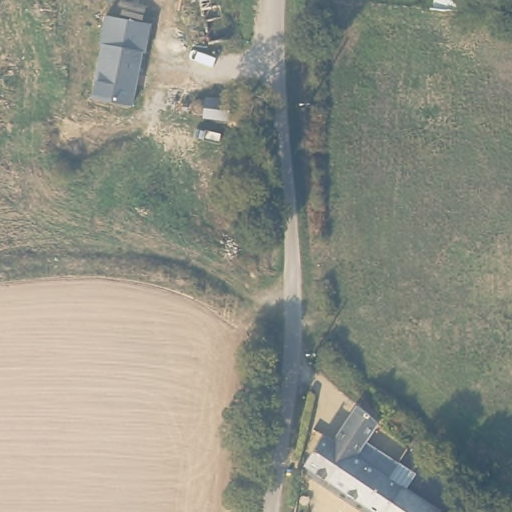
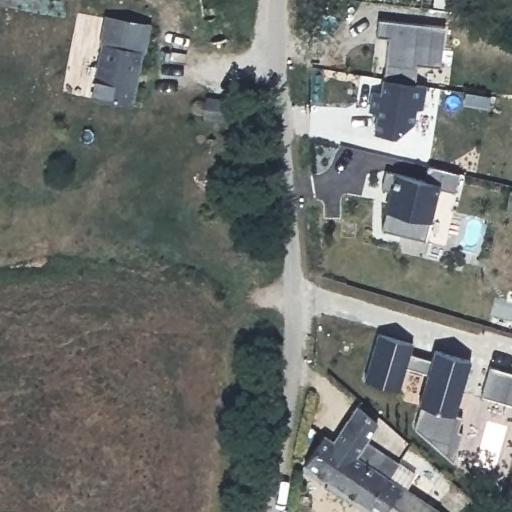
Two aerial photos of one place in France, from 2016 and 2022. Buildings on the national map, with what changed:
unchanged [(212,45),(200,0),(219,0),(229,41),(212,45)]
new [(99,44),(104,13),(150,22),(146,51),(141,51),(104,45),(99,44)]
new [(376,37),(378,18),(446,26),(439,66),(417,63),(414,82),(428,84),(423,107),(417,107),(416,122),(397,136),(373,133),(376,114),(373,111),(368,110),(371,90),(379,92),(382,77),(388,37),(376,37)]
unchanged [(141,51),(133,106),(94,99),(104,45),(141,51)]
unchanged [(203,97),(239,104),(237,127),(202,121),(203,97)]
new [(387,211),(384,210),(389,190),(382,188),(387,170),(394,172),(424,179),(428,165),(459,172),(454,191),(439,187),(425,239),(382,229),(387,211)]
new [(422,403),(418,402),(426,374),(406,367),(398,390),(364,380),(379,332),(413,342),(411,352),(429,359),(432,350),(471,361),(457,412),(462,413),(459,428),(463,430),(454,463),(415,426),(422,403)]
unchanged [(411,468),(400,487),(438,512),(376,512),(315,470),(337,441),(347,447),(357,433),(372,413),(391,430),(388,434),(380,447),(411,468)]
demolished [(459,488),(447,501),(429,489),(433,484),(422,476),(424,472),(417,465),(419,461),(459,488)]
unchanged [(312,505),(310,512),(297,512),(299,503),(312,505)]

